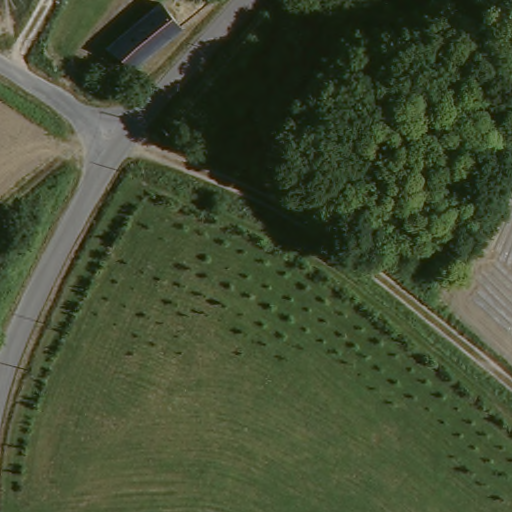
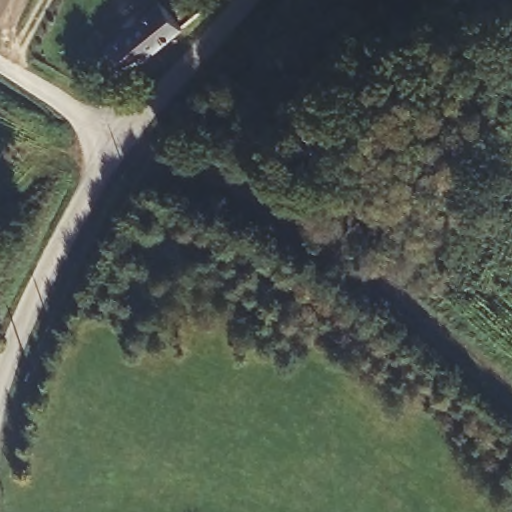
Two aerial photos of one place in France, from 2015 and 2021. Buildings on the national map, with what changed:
unchanged [(182,19),(134,65),(130,62),(109,40),(148,0),(162,0),(182,19)]

